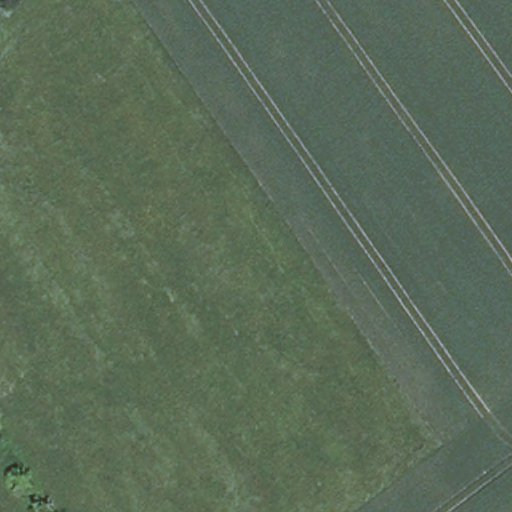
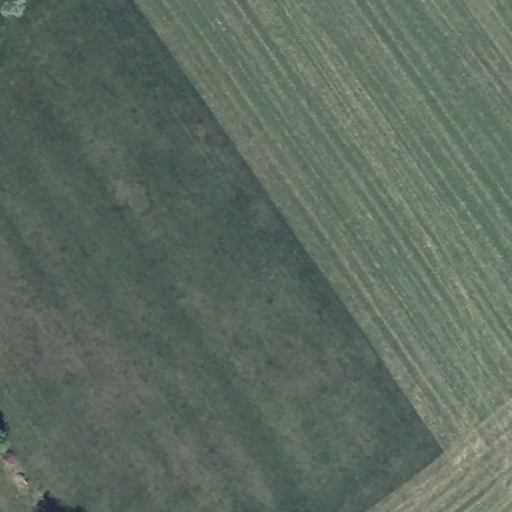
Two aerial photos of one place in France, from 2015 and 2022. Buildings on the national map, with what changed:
[]

